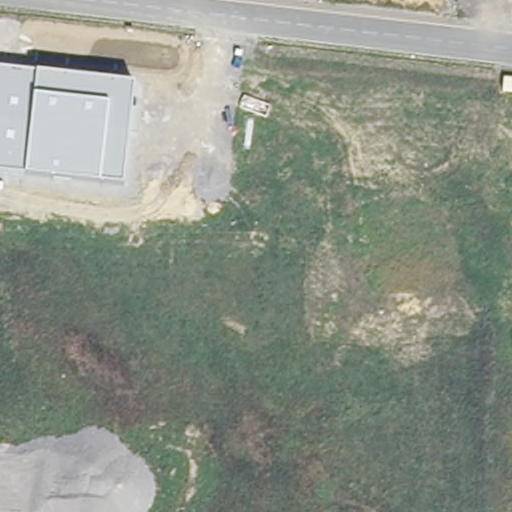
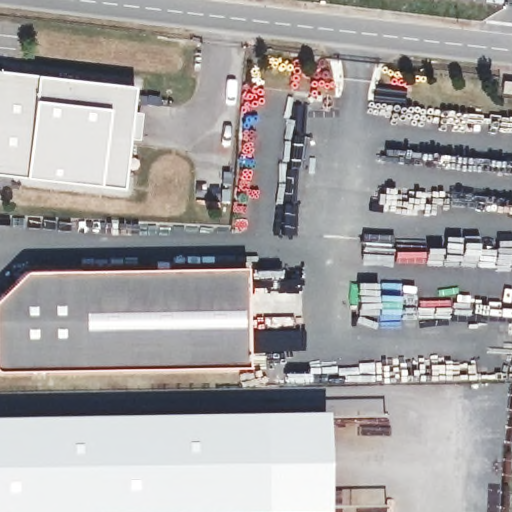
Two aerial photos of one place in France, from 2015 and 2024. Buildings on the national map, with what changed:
unchanged [(133,86),(129,112),(141,113),(138,138),(128,139),(122,187),(0,174),(0,71),(133,86)]
new [(25,272),(247,268),(249,367),(0,372),(0,296),(25,272)]
new [(330,511),(261,512),(0,512),(0,417),(327,410),(330,511)]

